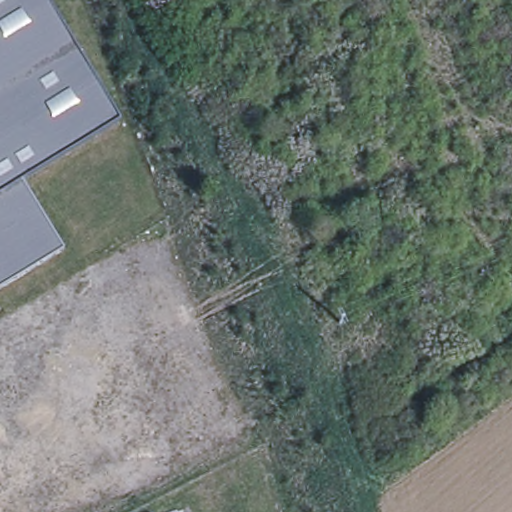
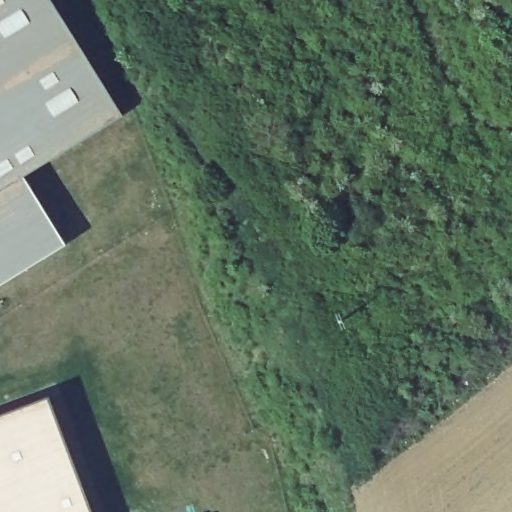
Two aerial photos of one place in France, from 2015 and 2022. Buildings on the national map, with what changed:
unchanged [(22,176),(62,245),(0,285),(0,0),(49,0),(120,115),(22,176)]
new [(0,416),(47,399),(90,512),(0,512),(0,416)]

